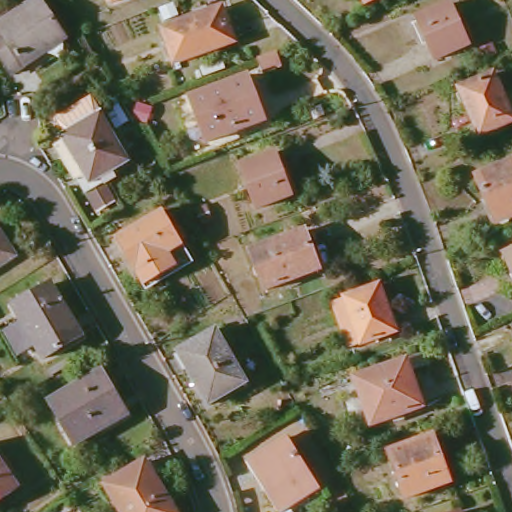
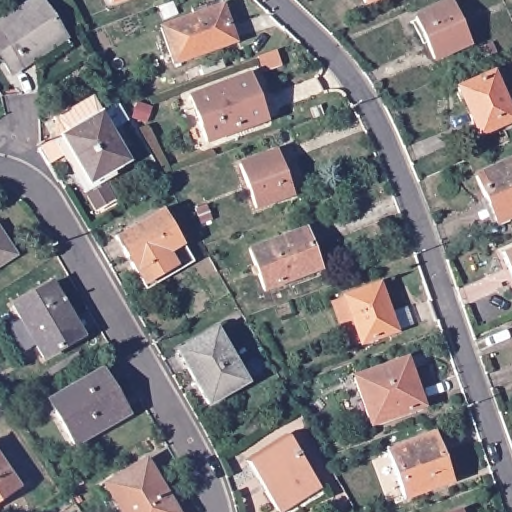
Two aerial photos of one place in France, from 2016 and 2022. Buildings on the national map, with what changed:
unchanged [(0,19),(29,0),(38,0),(63,39),(9,74),(0,60),(0,19)]
unchanged [(369,0),(365,2),(364,0),(369,0)]
unchanged [(417,18),(450,4),(469,45),(436,59),(417,18)]
unchanged [(220,6),(232,40),(173,62),(161,28),(220,6)]
unchanged [(456,89),(491,74),(502,98),(512,94),(512,121),(477,136),(456,89)]
unchanged [(188,99),(244,77),(259,120),(203,142),(188,99)]
unchanged [(53,142),(55,118),(92,96),(129,159),(87,184),(80,189),(53,142)]
unchanged [(181,154),(197,148),(202,160),(185,166),(181,154)]
unchanged [(239,164),(274,152),(289,195),(255,208),(239,164)]
unchanged [(474,178),(512,160),(512,214),(493,222),(474,178)]
unchanged [(102,183),(111,199),(94,209),(85,193),(102,183)]
unchanged [(115,238),(161,211),(187,258),(142,285),(115,238)]
unchanged [(247,251),(301,232),(315,270),(261,289),(247,251)]
unchanged [(0,261),(0,236),(11,254),(0,261)]
unchanged [(501,253),(512,248),(512,278),(501,253)]
unchanged [(30,348),(10,362),(0,343),(0,321),(12,314),(6,309),(47,284),(84,337),(39,363),(30,348)]
unchanged [(342,297),(376,284),(392,330),(358,343),(342,297)]
unchanged [(177,351),(214,330),(245,385),(207,406),(177,351)]
unchanged [(352,379),(402,361),(419,406),(367,424),(352,379)]
unchanged [(50,402),(100,372),(126,416),(75,446),(50,402)]
unchanged [(386,453),(429,437),(446,483),(402,499),(386,453)]
unchanged [(260,493),(262,491),(245,460),(282,438),(315,494),(283,512),(270,512),(260,493)]
unchanged [(105,485),(142,461),(164,494),(161,497),(170,512),(121,512),(105,485)]
unchanged [(0,502),(0,470),(15,493),(0,502)]

